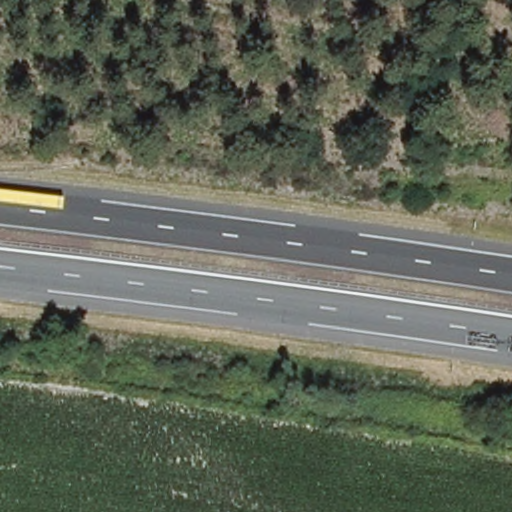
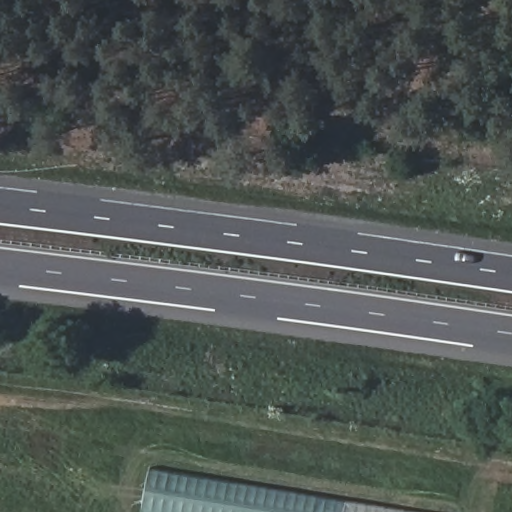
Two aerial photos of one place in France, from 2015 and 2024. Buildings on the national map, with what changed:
new [(153,469),(423,512),(145,512),(153,469)]

